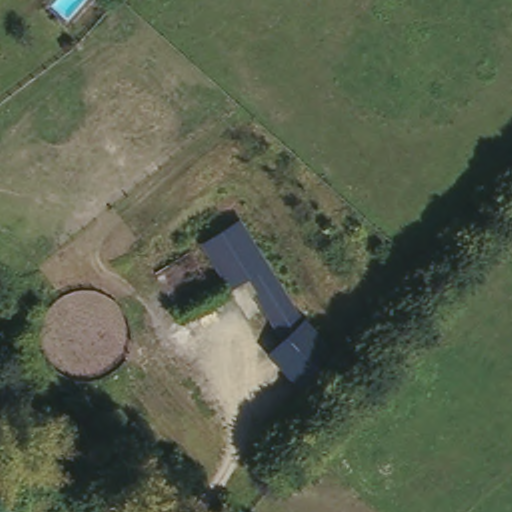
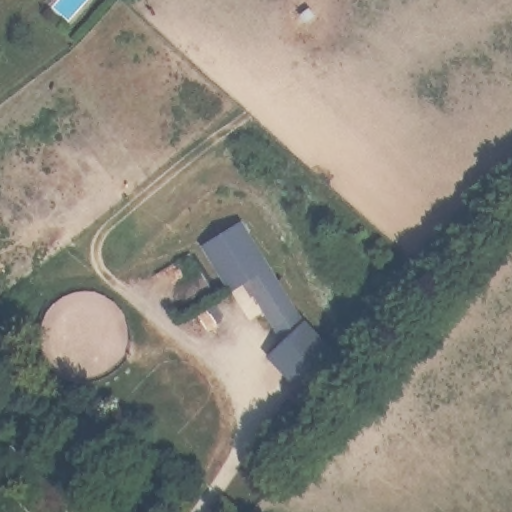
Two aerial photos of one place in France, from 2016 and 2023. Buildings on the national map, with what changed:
unchanged [(244,219),(307,320),(342,360),(304,395),(269,355),(286,339),(250,279),(231,290),(204,244),(244,219)]

